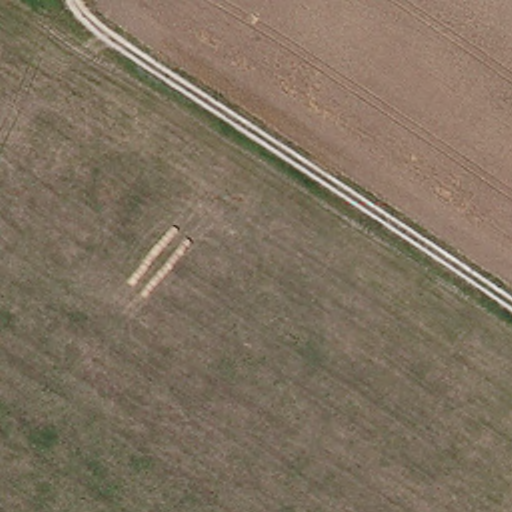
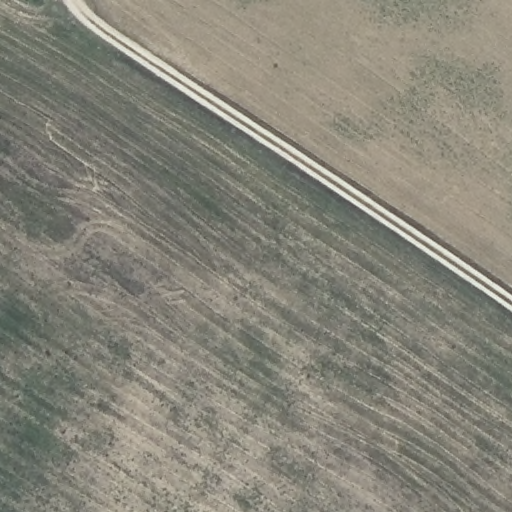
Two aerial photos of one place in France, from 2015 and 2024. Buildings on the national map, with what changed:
[]

